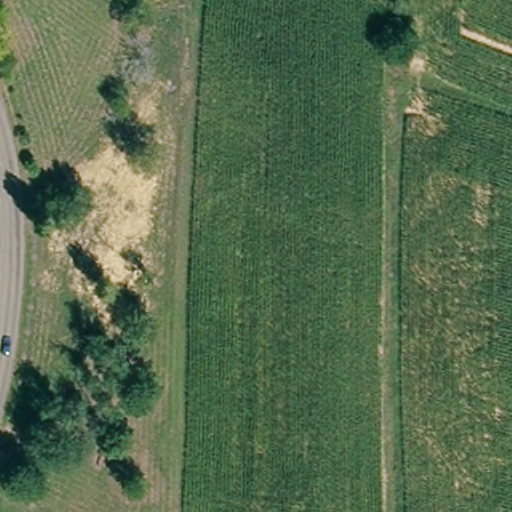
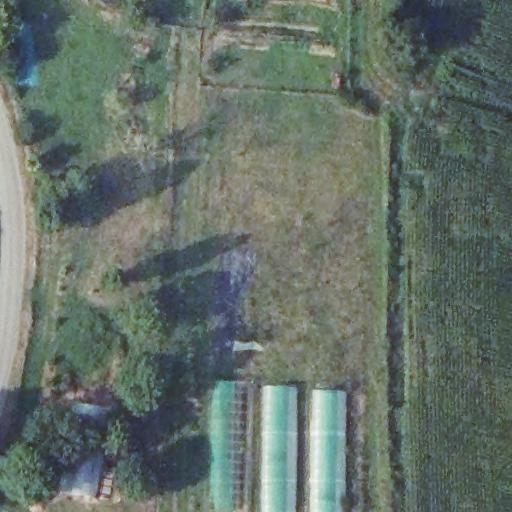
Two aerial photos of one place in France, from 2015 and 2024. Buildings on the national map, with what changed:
new [(344,512),(222,512),(210,511),(215,381),(253,381),(253,385),(296,387),(296,391),(345,392),(344,512)]
new [(60,493),(76,402),(111,408),(95,497),(60,493)]

